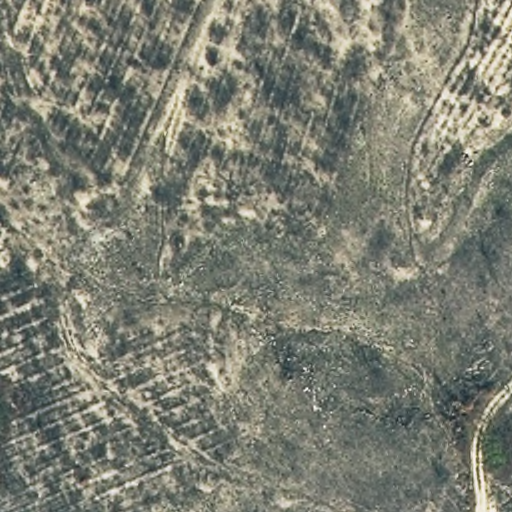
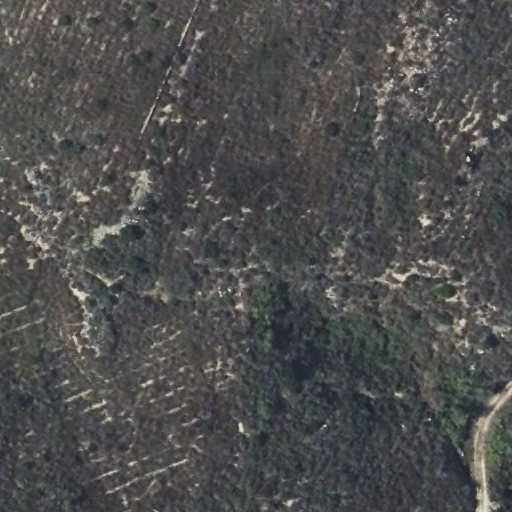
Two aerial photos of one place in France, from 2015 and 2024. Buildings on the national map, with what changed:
[]

